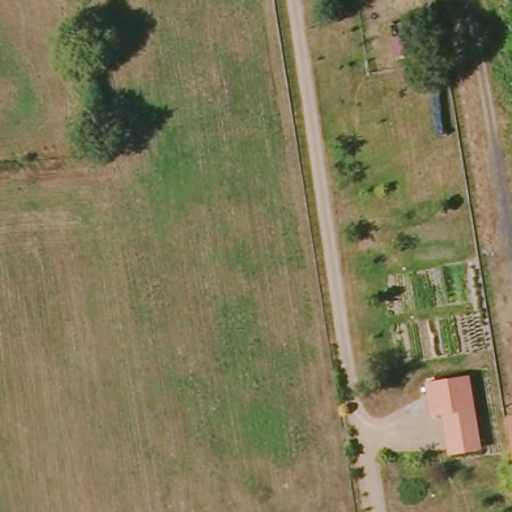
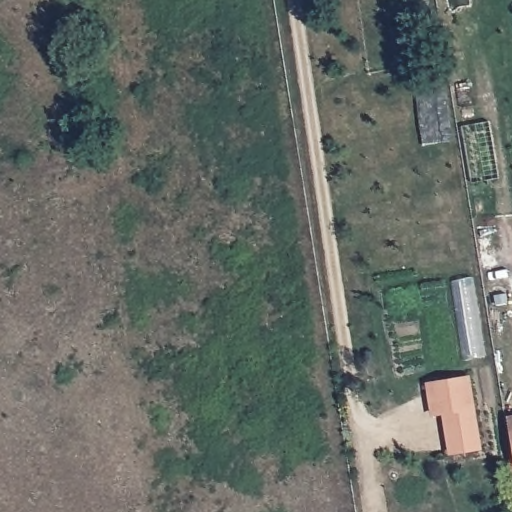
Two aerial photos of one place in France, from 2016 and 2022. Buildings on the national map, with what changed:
unchanged [(394,44),(396,59),(381,62),(379,47),(394,44)]
unchanged [(432,416),(426,387),(466,380),(479,449),(449,455),(442,414),(432,416)]
unchanged [(504,423),(512,421),(512,464),(504,423)]

